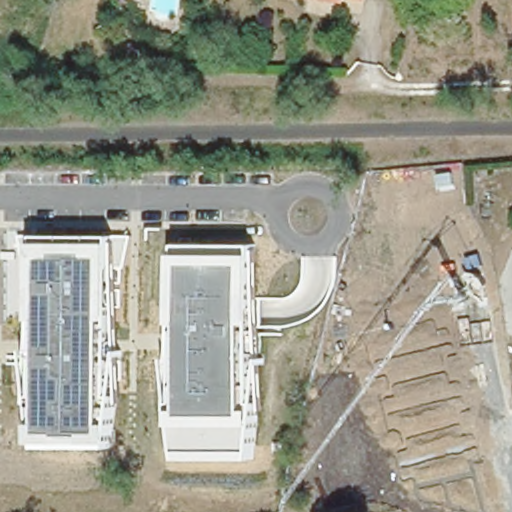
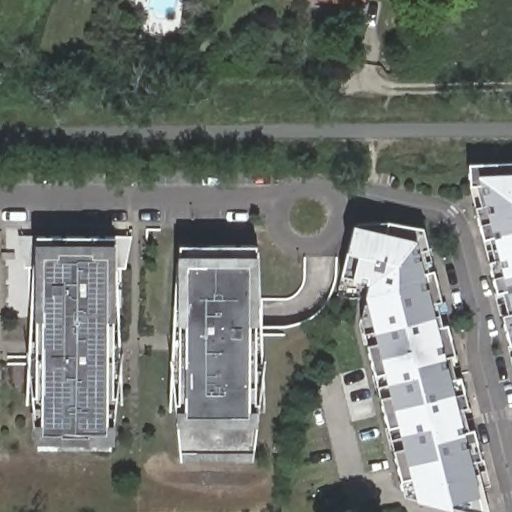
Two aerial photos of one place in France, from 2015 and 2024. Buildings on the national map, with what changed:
unchanged [(319,0),(344,0),(344,5),(319,0)]
unchanged [(360,0),(366,0),(366,1),(360,0)]
new [(472,184),(471,162),(512,160),(512,340),(472,184)]
new [(388,220),(423,226),(485,469),(481,470),(490,512),(472,512),(449,507),(410,500),(363,318),(369,284),(344,278),(355,222),(388,220)]
unchanged [(116,450),(32,448),(31,236),(116,235),(116,450)]
unchanged [(259,411),(255,460),(182,460),(177,422),(176,245),(259,245),(259,411)]

